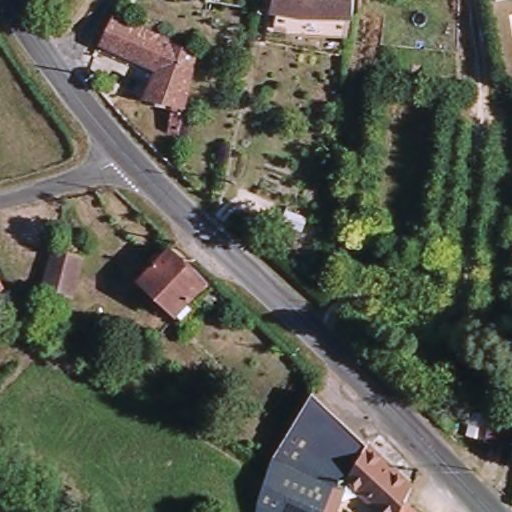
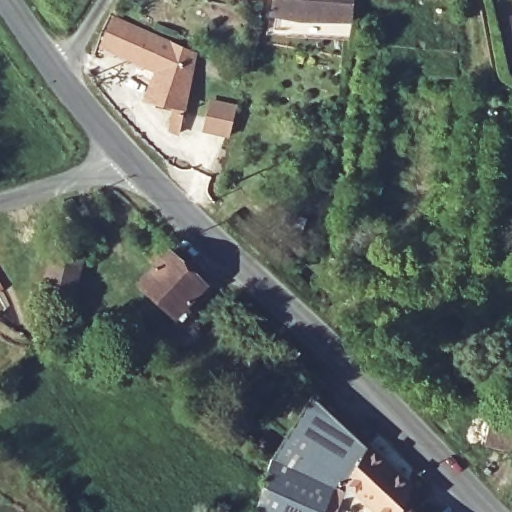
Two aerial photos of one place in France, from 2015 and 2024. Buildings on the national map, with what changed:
unchanged [(275,0),(355,0),(352,34),(315,31),(270,24),(275,0)]
unchanged [(196,59),(183,121),(144,108),(158,77),(102,49),(115,20),(196,59)]
new [(210,102),(234,108),(227,137),(203,131),(210,102)]
unchanged [(59,242),(86,249),(72,300),(45,293),(59,242)]
unchanged [(170,250),(205,285),(175,316),(139,281),(170,250)]
unchanged [(2,288),(0,289),(0,285),(2,288)]
unchanged [(272,473),(279,447),(311,395),(368,447),(347,484),(346,486),(334,484),(272,473)]
unchanged [(489,410),(512,416),(512,448),(481,440),(489,410)]
unchanged [(405,506),(403,512),(376,512),(347,484),(368,447),(412,489),(405,506)]
unchanged [(272,473),(334,484),(317,512),(278,512),(264,504),(272,473)]
unchanged [(414,512),(403,512),(405,506),(414,512)]

